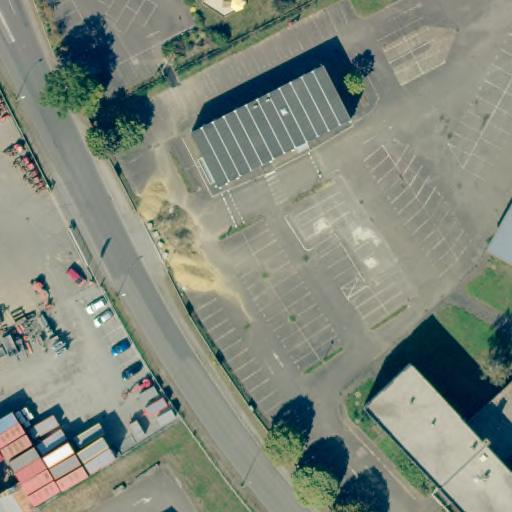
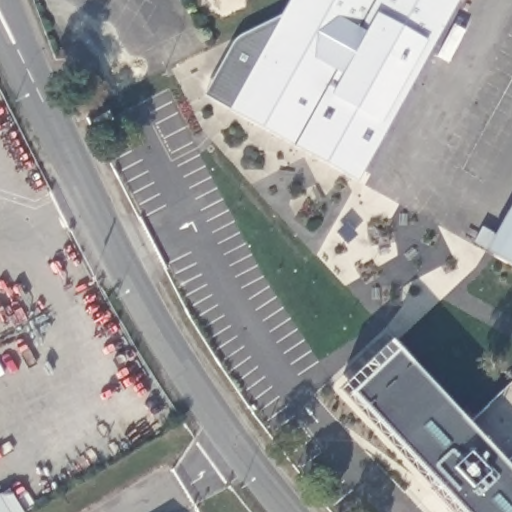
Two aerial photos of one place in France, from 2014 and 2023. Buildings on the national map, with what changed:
new [(358,180),(204,95),(236,36),(282,15),(291,0),(457,0),(358,180)]
demolished [(321,65),(348,119),(216,186),(189,131),(321,65)]
demolished [(356,298),(377,283),(338,222),(311,240),(291,212),(315,197),(328,217),(332,215),(317,192),(346,173),(402,259),(380,274),(384,279),(405,266),(423,293),(376,328),(356,298)]
unchanged [(512,230),(512,261),(498,254),(512,230)]
unchanged [(512,467),(512,512),(466,512),(367,405),(414,361),(466,418),(512,379),(512,456),(507,461),(512,467)]

